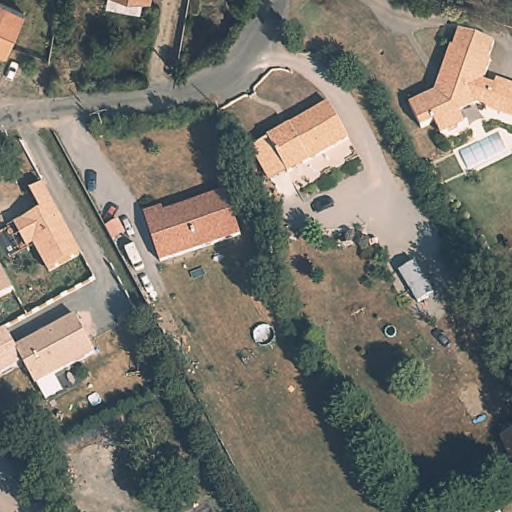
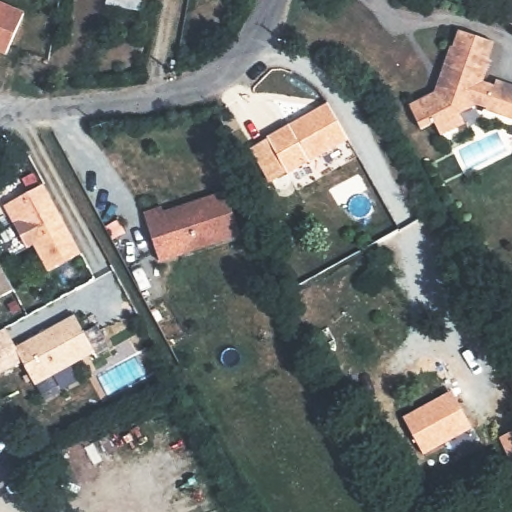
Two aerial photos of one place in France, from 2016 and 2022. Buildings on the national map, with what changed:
unchanged [(145,11),(111,4),(112,0),(148,0),(145,11)]
unchanged [(24,13),(5,53),(0,51),(0,3),(24,13)]
unchanged [(455,48),(460,32),(494,45),(487,62),(490,63),(483,84),(495,89),(498,83),(512,88),(512,121),(487,112),(488,109),(477,105),(460,114),(466,126),(441,137),(435,123),(421,129),(410,105),(435,93),(440,77),(451,48),(455,48)]
unchanged [(348,137),(286,172),(266,139),(325,103),(348,137)]
unchanged [(6,227),(13,223),(40,209),(30,189),(43,182),(80,251),(47,269),(32,243),(26,246),(19,250),(6,227)]
unchanged [(141,215),(159,209),(160,210),(161,216),(224,195),(239,237),(158,264),(141,215)]
demolished [(438,288),(407,305),(390,274),(420,259),(438,288)]
unchanged [(0,299),(0,270),(12,292),(0,299)]
unchanged [(16,347),(75,315),(95,355),(35,385),(23,364),(0,376),(0,332),(5,329),(16,347)]
new [(450,390),(472,428),(423,456),(402,418),(450,390)]
new [(512,464),(500,443),(512,437),(512,464)]

